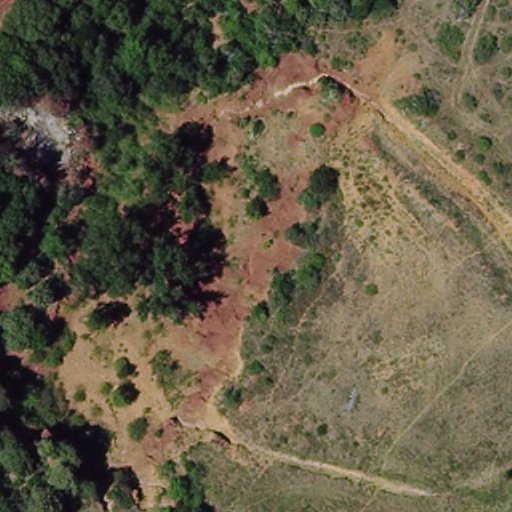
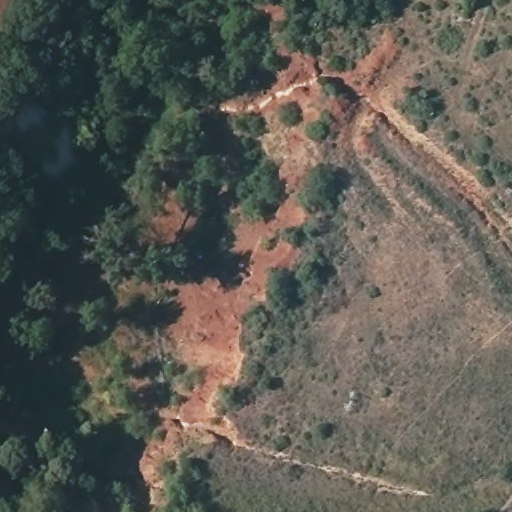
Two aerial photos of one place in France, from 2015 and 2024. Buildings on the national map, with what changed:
[]

